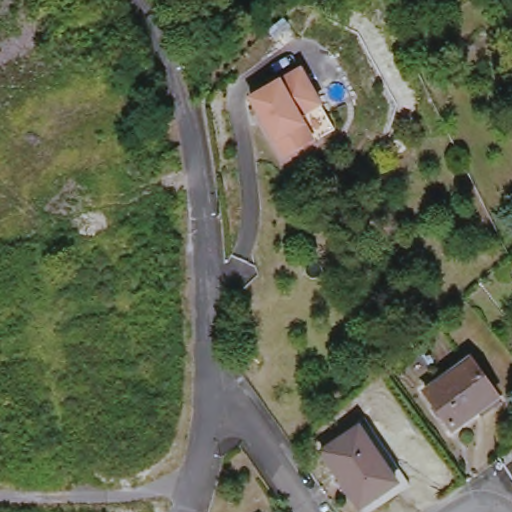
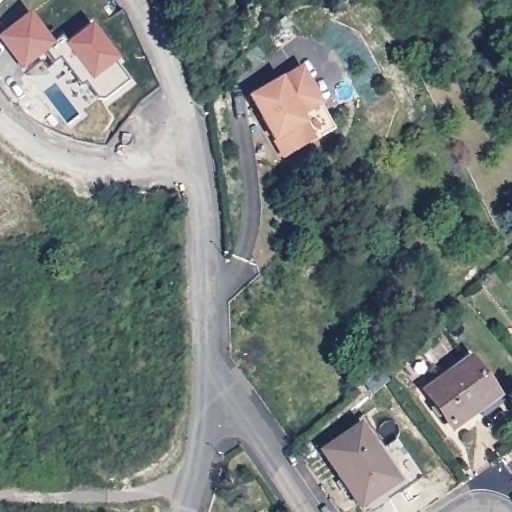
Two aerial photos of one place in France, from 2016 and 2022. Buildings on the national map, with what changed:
new [(104,101),(96,100),(85,84),(80,86),(60,60),(53,64),(45,53),(24,72),(0,41),(0,36),(30,14),(52,46),(62,39),(66,45),(90,26),(117,63),(112,67),(126,83),(104,101)]
unchanged [(320,105),(300,116),(314,142),(285,158),(251,99),(302,71),(320,105)]
unchanged [(494,401),(454,430),(425,391),(469,359),(482,377),(479,380),(494,401)]
unchanged [(361,512),(359,512),(349,496),(346,498),(339,487),(341,485),(322,457),(360,432),(397,488),(361,512)]

